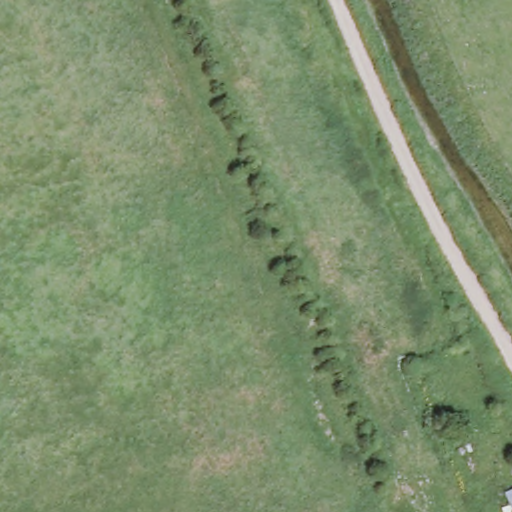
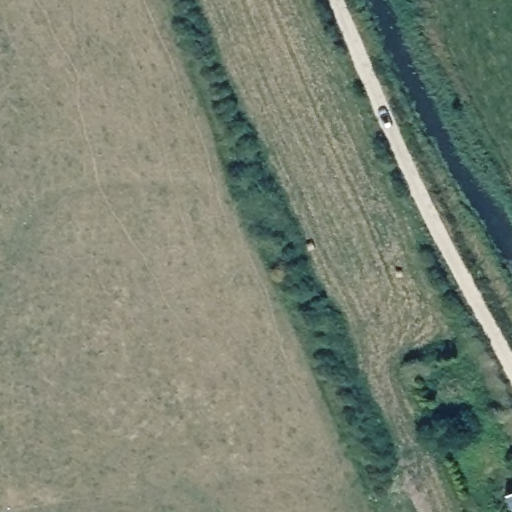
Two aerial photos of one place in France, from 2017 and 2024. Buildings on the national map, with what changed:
[]

